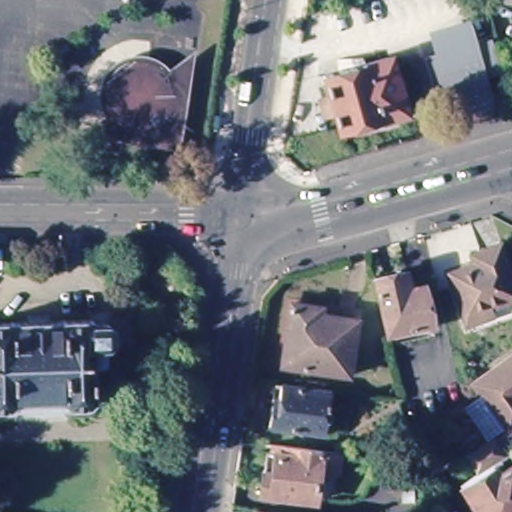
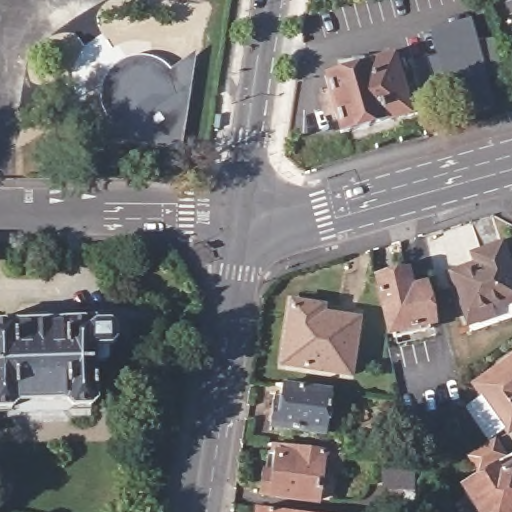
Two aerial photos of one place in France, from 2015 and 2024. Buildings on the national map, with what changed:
unchanged [(458,116),(456,109),(450,86),(434,91),(423,57),(439,53),(434,33),(472,23),(477,42),(493,38),(503,72),(487,76),(493,99),(496,106),(458,116)]
unchanged [(314,99),(324,96),(318,76),(386,57),(397,54),(413,111),(401,114),(335,133),(329,113),(319,116),(314,99)]
unchanged [(112,119),(103,98),(111,77),(129,62),(154,62),(169,77),(195,59),(189,100),(180,152),(125,144),(87,138),(112,119)]
unchanged [(512,313),(470,328),(448,268),(473,259),(470,249),(479,246),(501,238),(512,269),(512,313)]
unchanged [(390,335),(389,330),(377,276),(406,270),(410,287),(424,284),(432,321),(433,326),(390,335)]
unchanged [(316,307),(316,312),(357,318),(350,375),(288,365),(291,349),(285,347),(292,304),(316,307)]
unchanged [(94,318),(94,322),(108,321),(108,317),(131,317),(131,346),(106,346),(106,360),(95,360),(96,399),(92,404),(69,404),(65,398),(47,399),(17,400),(12,406),(0,407),(0,321),(94,318)]
unchanged [(502,365),(512,357),(512,432),(479,387),(505,368),(502,365)]
unchanged [(331,393),(325,436),(270,428),(274,406),(279,406),(281,386),(331,393)]
unchanged [(512,512),(482,512),(469,491),(491,478),(481,461),(505,445),(512,457),(512,465),(503,471),(508,478),(512,476),(512,512)]
unchanged [(256,496),(263,454),(272,455),(273,447),(318,454),(338,457),(334,477),(315,473),(310,504),(256,496)]
unchanged [(413,472),(411,495),(384,493),(384,470),(413,472)]
unchanged [(253,512),(253,511),(260,512),(253,512)]

